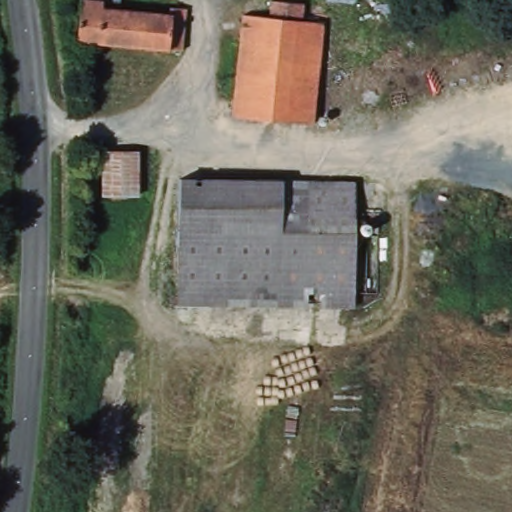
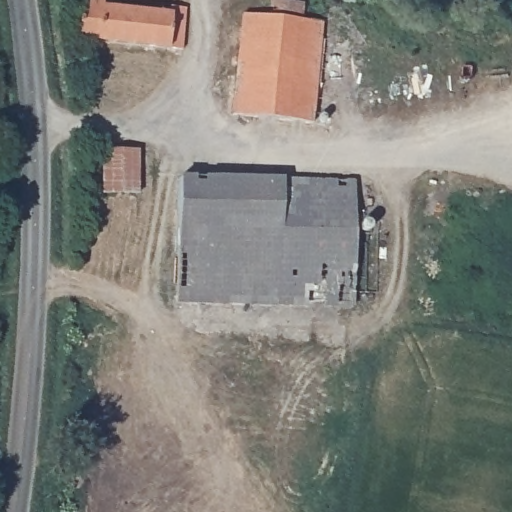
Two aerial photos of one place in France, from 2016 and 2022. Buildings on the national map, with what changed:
unchanged [(310,122),(231,115),(244,14),(269,15),(274,2),(301,5),(301,20),(322,22),(310,122)]
unchanged [(72,46),(78,6),(111,9),(111,14),(167,20),(168,12),(178,15),(173,55),(72,46)]
unchanged [(156,155),(154,179),(139,178),(138,199),(97,197),(100,152),(156,155)]
unchanged [(186,306),(185,264),(184,185),(354,179),(354,305),(339,305),(186,306)]

